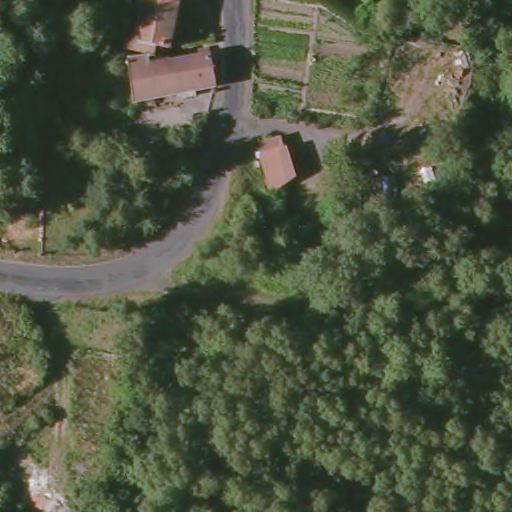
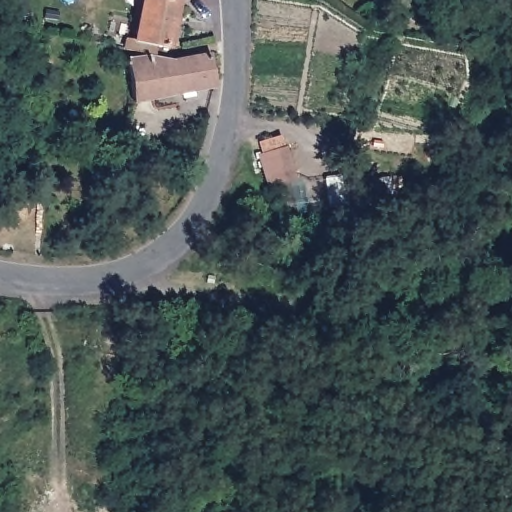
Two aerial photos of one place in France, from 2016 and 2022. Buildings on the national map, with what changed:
unchanged [(140,0),(177,0),(168,46),(150,42),(145,53),(125,49),(140,0)]
unchanged [(207,79),(133,100),(125,56),(133,53),(168,60),(202,47),(207,79)]
unchanged [(295,175),(272,181),(262,143),(285,137),(295,175)]

